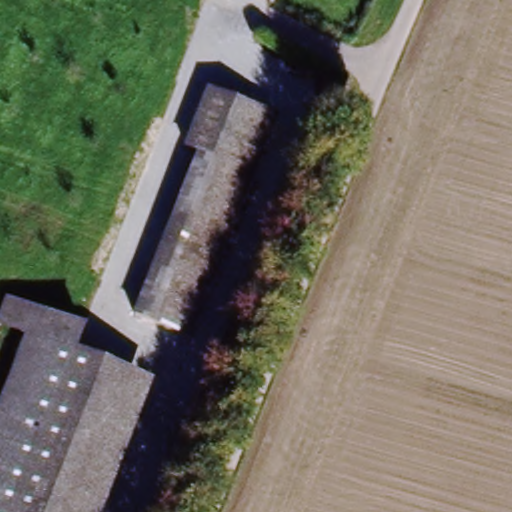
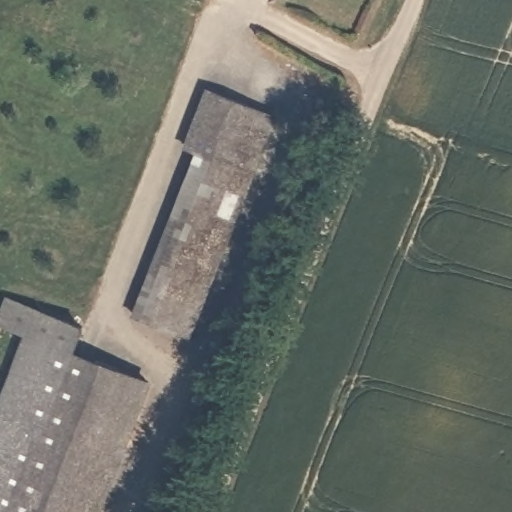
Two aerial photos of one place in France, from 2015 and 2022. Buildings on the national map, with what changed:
unchanged [(185,147),(207,90),(275,117),(252,175),(199,154),(185,147)]
unchanged [(139,308),(199,154),(252,175),(187,339),(145,322),(135,318),(139,308)]
unchanged [(3,325),(13,302),(85,332),(77,355),(43,342),(3,325)]
unchanged [(84,512),(0,512),(0,448),(43,342),(77,355),(137,380),(84,512)]

